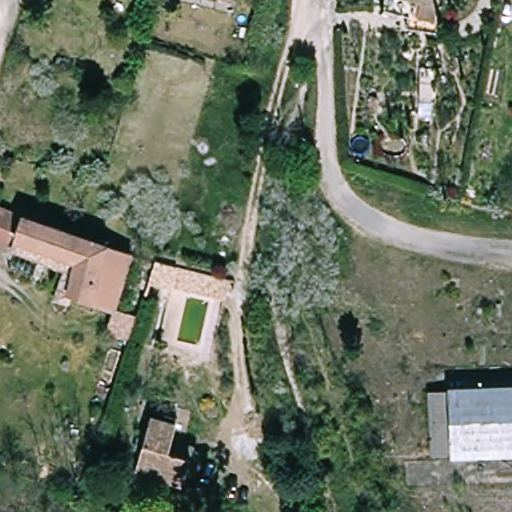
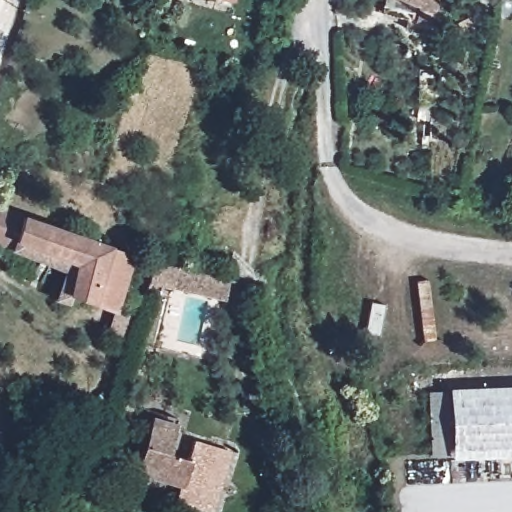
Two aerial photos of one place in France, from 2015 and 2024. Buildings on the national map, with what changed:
unchanged [(443,22),(443,36),(415,30),(416,17),(389,12),(392,0),(444,0),(443,22)]
unchanged [(447,83),(439,82),(439,66),(449,66),(447,83)]
unchanged [(44,223),(123,250),(134,254),(114,305),(113,308),(108,306),(69,291),(65,300),(52,295),(64,268),(44,261),(35,258),(13,249),(0,245),(0,206),(44,223)]
unchanged [(224,301),(149,284),(156,260),(230,279),(224,301)]
unchanged [(128,341),(116,337),(108,326),(113,308),(137,317),(128,341)]
unchanged [(512,455),(497,456),(452,457),(451,415),(450,390),(510,387),(512,387),(512,455)]
unchanged [(428,396),(445,396),(446,453),(429,454),(429,415),(428,396)]
unchanged [(139,468),(152,419),(176,425),(168,456),(192,462),(185,488),(137,474),(139,468)]
new [(232,452),(214,512),(202,512),(174,503),(179,486),(185,488),(192,462),(187,461),(193,440),(232,452)]

